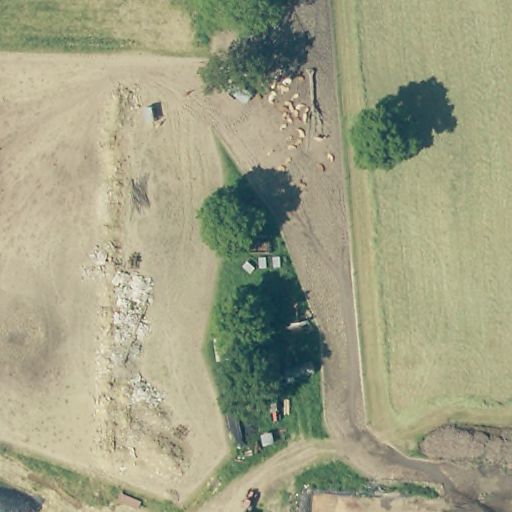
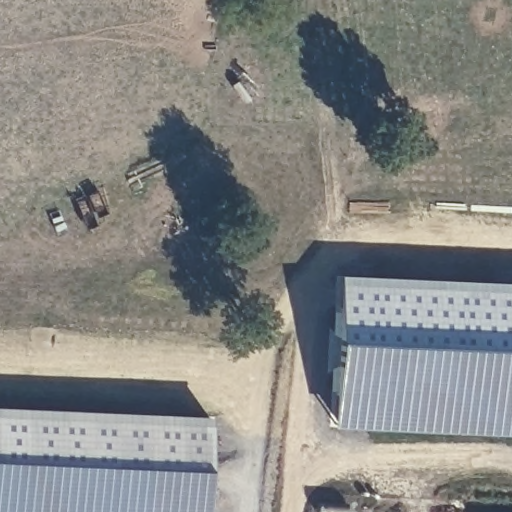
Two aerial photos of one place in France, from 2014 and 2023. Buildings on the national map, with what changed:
new [(337,285),(512,292),(512,435),(335,428),(337,285)]
new [(204,512),(0,512),(0,410),(207,420),(204,512)]

